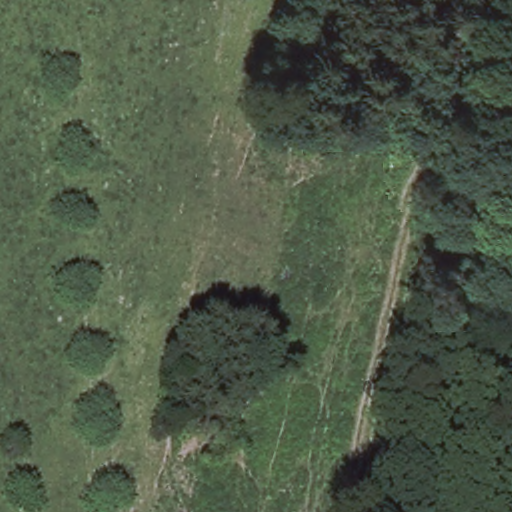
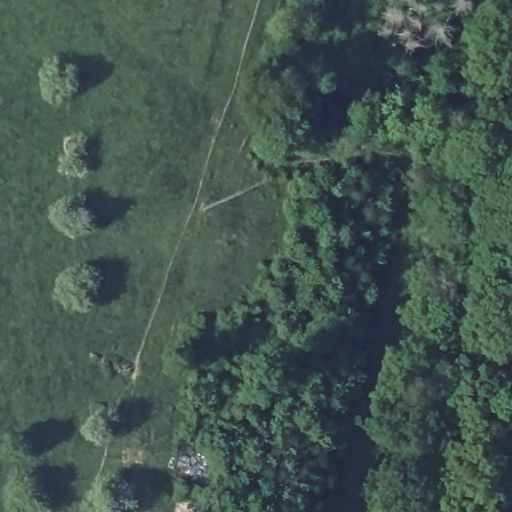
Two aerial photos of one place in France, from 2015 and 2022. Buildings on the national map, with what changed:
[]

